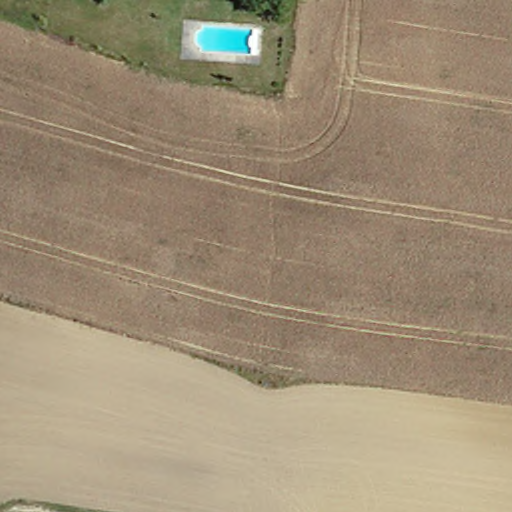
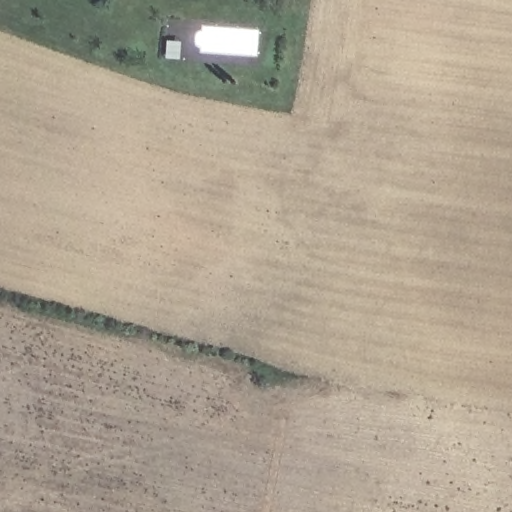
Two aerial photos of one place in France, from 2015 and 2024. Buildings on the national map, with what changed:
[]

